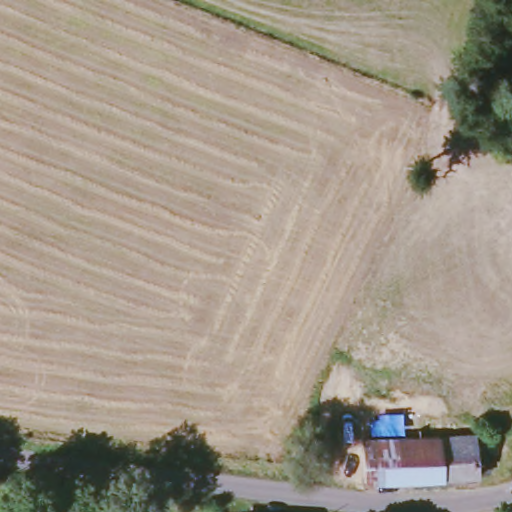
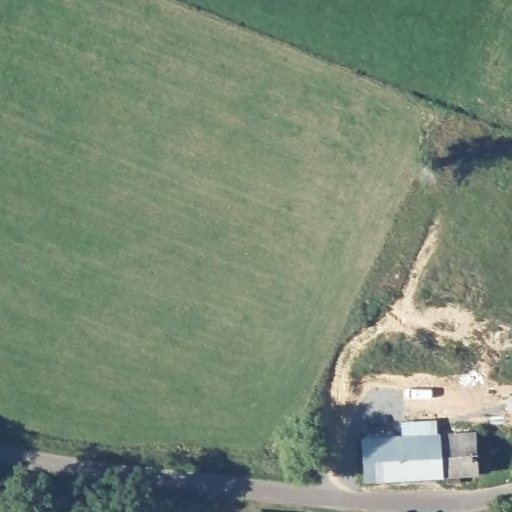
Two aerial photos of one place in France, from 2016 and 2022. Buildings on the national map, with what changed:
unchanged [(492,475),(479,476),(369,485),(367,450),(367,442),(476,437),(478,457),(491,456),(492,475)]

